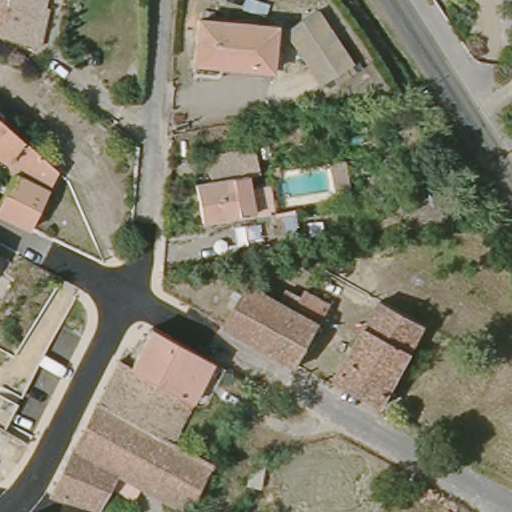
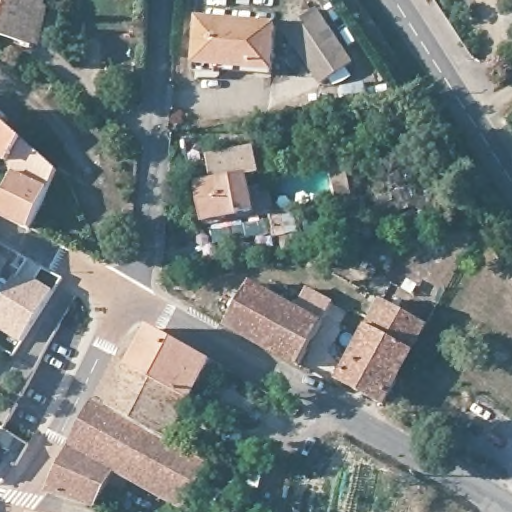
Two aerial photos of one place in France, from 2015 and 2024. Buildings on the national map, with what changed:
unchanged [(0,38),(0,0),(47,0),(37,45),(0,38)]
unchanged [(323,80),(289,25),(320,3),(356,57),(323,80)]
unchanged [(207,66),(202,65),(198,65),(193,65),(198,12),(272,19),(268,62),(216,57),(215,66),(211,66),(207,66)]
unchanged [(15,180),(16,174),(16,167),(16,166),(0,156),(0,115),(60,170),(31,227),(0,210),(0,194),(8,190),(12,185),(15,180)]
unchanged [(258,214),(206,220),(199,180),(213,177),(209,151),(258,146),(264,173),(253,175),(258,214)]
unchanged [(334,197),(332,174),(344,172),(346,196),(334,197)]
unchanged [(299,205),(302,221),(284,225),(284,231),(277,232),(275,227),(269,229),(266,214),(299,205)]
new [(61,277),(22,343),(13,357),(0,349),(0,298),(25,257),(61,277)]
unchanged [(227,323),(248,284),(277,298),(258,340),(227,323)]
unchanged [(277,298),(299,310),(310,288),(313,287),(334,298),(301,364),(258,340),(277,298)]
unchanged [(408,312),(432,324),(417,351),(402,377),(358,352),(387,302),(408,312)]
unchanged [(187,402),(127,367),(144,332),(206,363),(187,402)]
unchanged [(402,377),(386,406),(341,382),(358,352),(402,377)]
unchanged [(127,367),(187,402),(167,443),(93,406),(114,361),(127,367)]
unchanged [(167,443),(206,462),(208,464),(182,512),(179,512),(111,477),(95,512),(87,512),(63,506),(47,502),(93,406),(167,443)]

